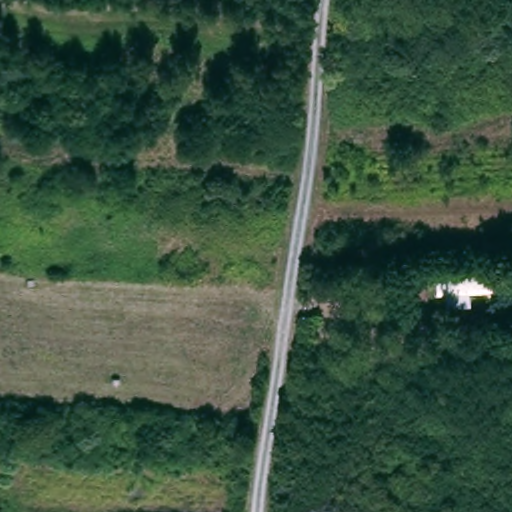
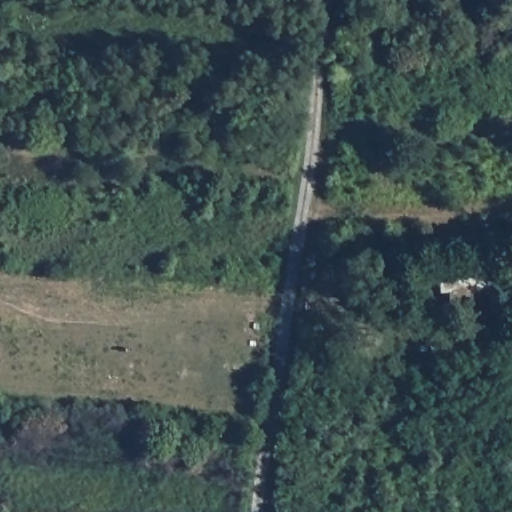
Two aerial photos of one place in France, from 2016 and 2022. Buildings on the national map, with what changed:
unchanged [(491,298),(450,300),(450,273),(475,270),(474,261),(491,261),(491,298)]

